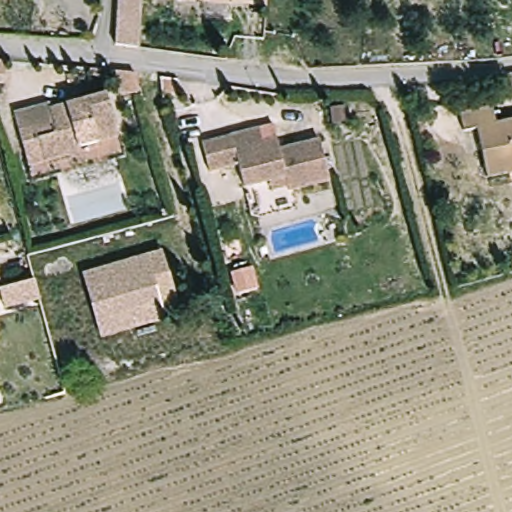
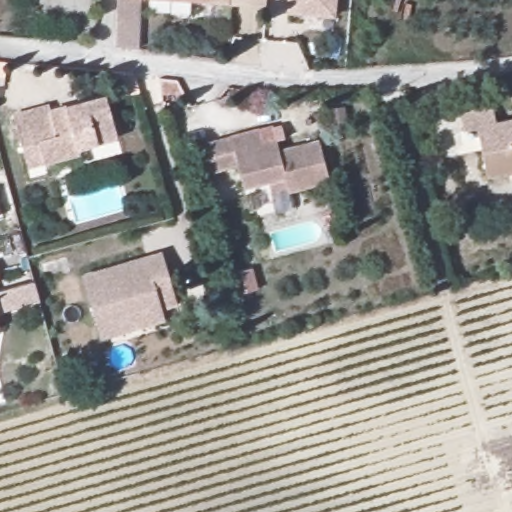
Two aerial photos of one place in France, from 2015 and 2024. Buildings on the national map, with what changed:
unchanged [(142,41),(122,38),(124,0),(144,0),(142,41)]
unchanged [(182,0),(272,0),(271,7),(182,0)]
new [(335,17),(286,13),(287,0),(336,0),(335,17)]
unchanged [(512,97),(510,97),(506,72),(512,72),(512,97)]
unchanged [(119,138),(83,149),(86,156),(51,164),(45,146),(29,151),(20,116),(53,107),(55,113),(106,97),(119,138)]
unchanged [(512,121),(512,161),(490,166),(482,127),(465,130),(463,111),(493,104),(497,124),(512,121)]
unchanged [(333,175),(291,187),(286,173),(249,184),(242,162),(211,170),(203,141),(258,127),(263,140),(276,136),(281,148),(322,136),(333,175)]
unchanged [(90,269),(167,248),(182,301),(165,305),(163,295),(102,312),(90,269)]
unchanged [(5,283),(0,286),(0,266),(5,283)]
unchanged [(163,295),(165,305),(168,315),(107,331),(102,312),(163,295)]
unchanged [(0,330),(0,324),(1,329),(0,330)]

